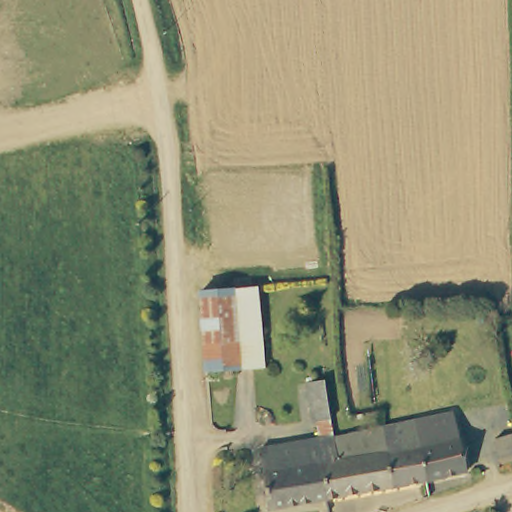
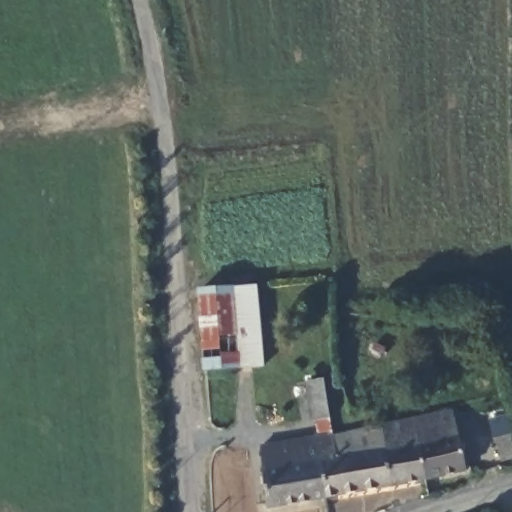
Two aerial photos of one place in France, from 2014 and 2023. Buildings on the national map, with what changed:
unchanged [(257,286),(262,285),(266,366),(241,366),(240,338),(236,287),(240,287),(239,276),(257,275),(257,286)]
unchanged [(207,339),(205,288),(236,287),(240,338),(207,339)]
unchanged [(241,366),(235,366),(235,369),(209,369),(207,339),(240,338),(241,366)]
unchanged [(290,439),(318,434),(320,433),(318,418),(312,418),(306,377),(311,376),(308,361),(312,360),(312,358),(312,357),(319,356),(322,374),(332,429),(381,420),(416,414),(425,477),(348,492),(326,496),(300,501),(290,439)]
unchanged [(452,408),(463,470),(425,477),(416,414),(452,408)]
unchanged [(266,507),(260,444),(285,440),(290,439),(300,501),(266,507)]

